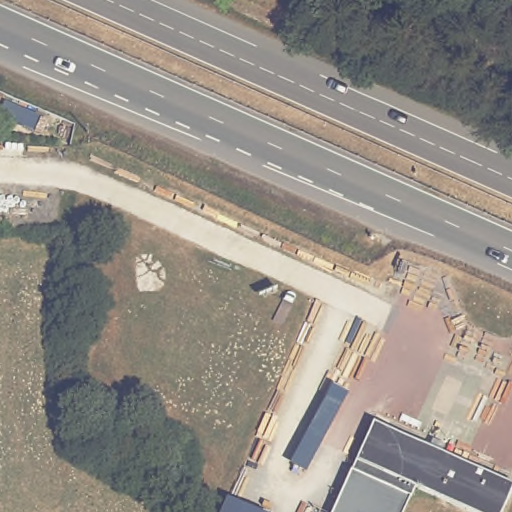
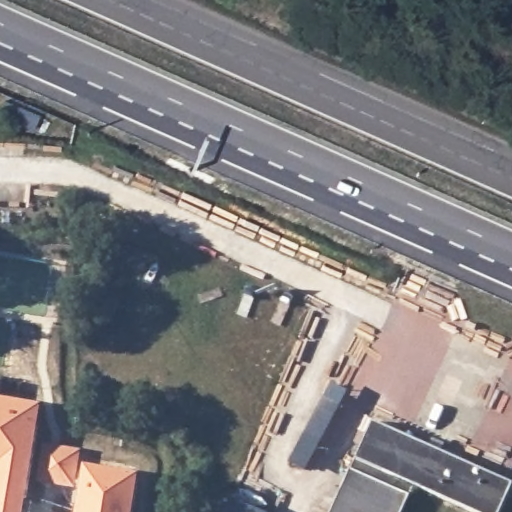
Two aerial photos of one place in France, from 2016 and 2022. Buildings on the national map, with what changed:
new [(0,385),(0,378),(1,378),(0,385)]
new [(332,384),(349,391),(304,472),(290,464),(332,384)]
new [(24,512),(0,512),(0,399),(42,406),(24,512)]
unchanged [(373,421),(429,446),(433,438),(445,444),(442,451),(512,481),(512,489),(502,512),(475,512),(417,487),(406,512),(334,512),(373,421)]
new [(42,445),(81,449),(75,488),(36,483),(42,445)]
new [(83,467),(139,474),(133,512),(77,512),(83,467)]
new [(225,498),(261,512),(220,512),(225,498)]

